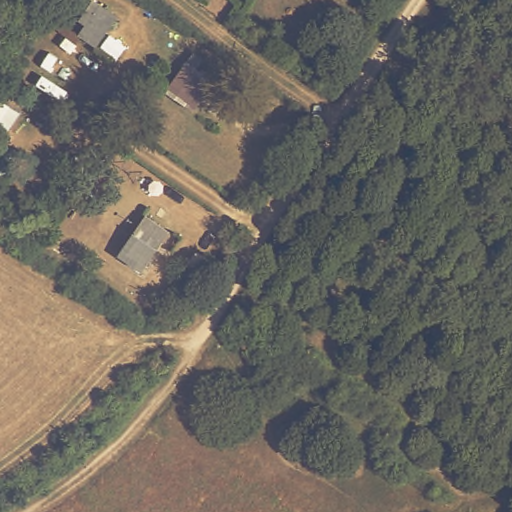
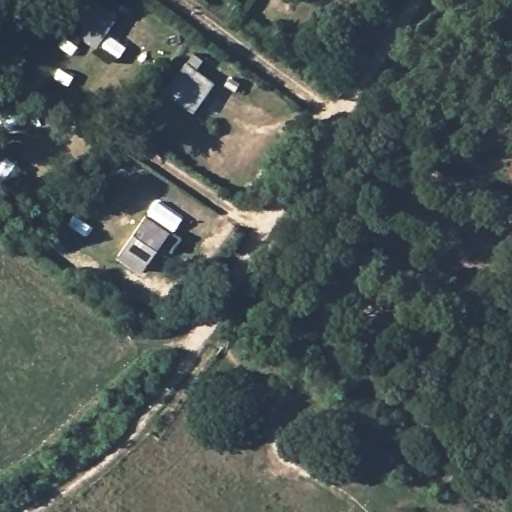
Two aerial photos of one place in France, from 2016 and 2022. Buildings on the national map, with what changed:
unchanged [(92,1),(116,17),(95,47),(71,31),(92,1)]
unchanged [(193,54),(199,57),(202,60),(195,70),(212,82),(191,111),(171,97),(165,92),(193,54)]
unchanged [(145,218),(167,234),(141,272),(118,257),(145,218)]

